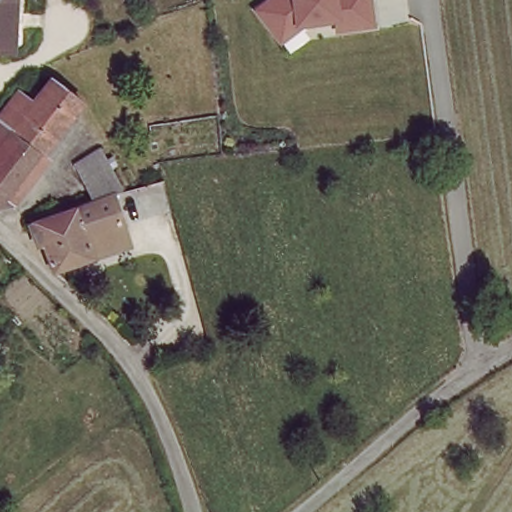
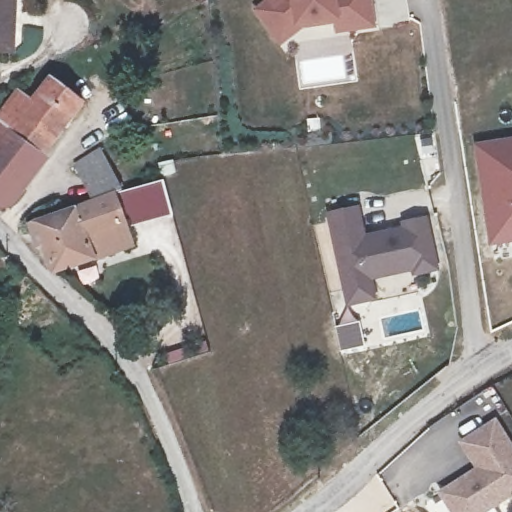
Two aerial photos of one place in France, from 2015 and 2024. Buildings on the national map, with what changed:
unchanged [(0,52),(0,0),(19,0),(15,54),(0,52)]
unchanged [(251,7),(256,2),(258,0),(364,0),(367,19),(332,25),(330,12),(299,17),(276,37),(251,7)]
unchanged [(18,90),(31,102),(51,77),(84,107),(46,162),(52,165),(15,216),(0,218),(0,115),(18,90)]
new [(512,136),(512,242),(487,246),(472,142),(512,136)]
unchanged [(87,207),(82,208),(65,158),(101,147),(117,199),(87,207)]
new [(115,192),(161,181),(171,216),(126,225),(117,199),(115,192)]
unchanged [(126,225),(91,235),(101,264),(61,277),(33,220),(69,211),(82,208),(87,207),(117,199),(126,225)]
new [(375,300),(345,306),(326,212),(359,205),(365,234),(401,226),(400,220),(427,215),(437,271),(412,276),(412,272),(372,281),(375,300)]
unchanged [(134,253),(101,264),(91,235),(126,225),(134,253)]
new [(495,417),(512,443),(512,496),(486,512),(450,512),(437,492),(475,467),(459,441),(495,417)]

